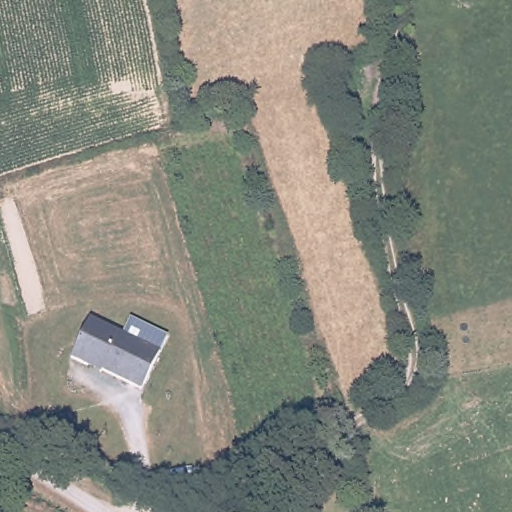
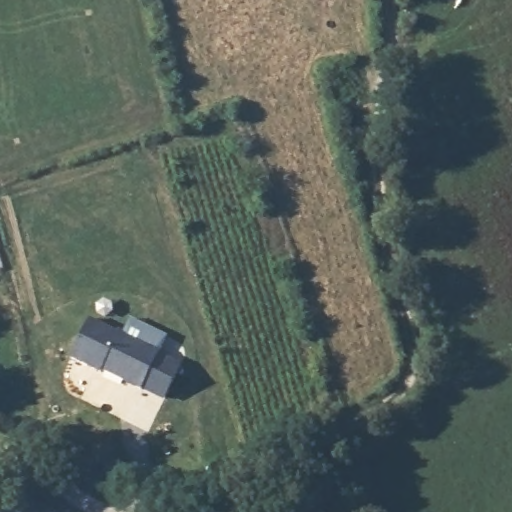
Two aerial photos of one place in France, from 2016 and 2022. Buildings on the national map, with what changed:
unchanged [(135,340),(158,351),(145,376),(140,388),(86,362),(85,364),(69,356),(88,317),(135,340)]

